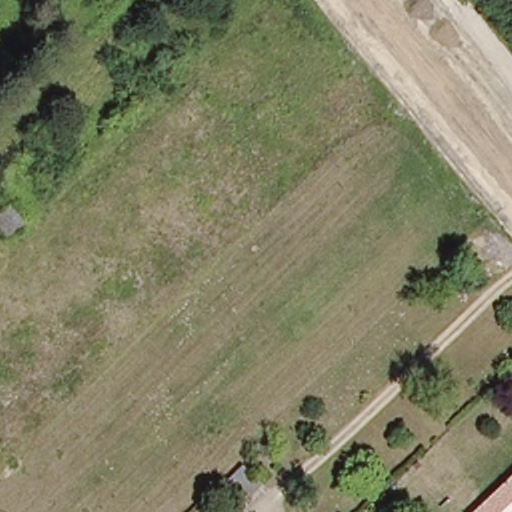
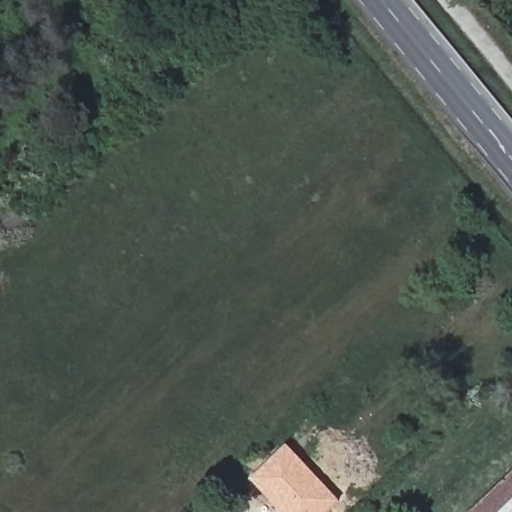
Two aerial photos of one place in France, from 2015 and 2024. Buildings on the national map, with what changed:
unchanged [(9,236),(0,226),(0,215),(11,205),(26,221),(9,236)]
new [(254,477),(288,445),(342,502),(331,512),(281,512),(256,485),(259,482),(254,477)]
unchanged [(225,485),(242,466),(259,482),(241,500),(225,485)]
unchanged [(472,512),(512,474),(512,498),(497,512),(472,512)]

